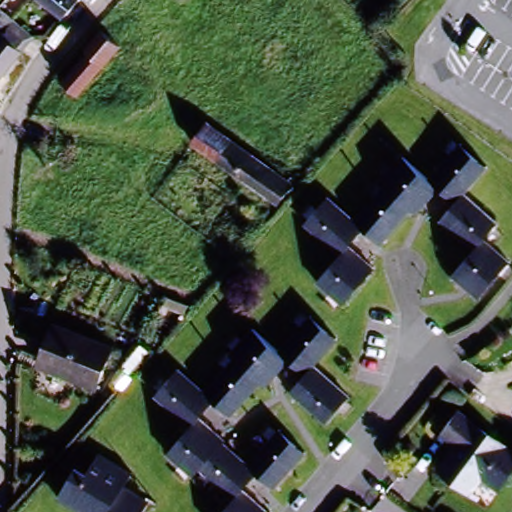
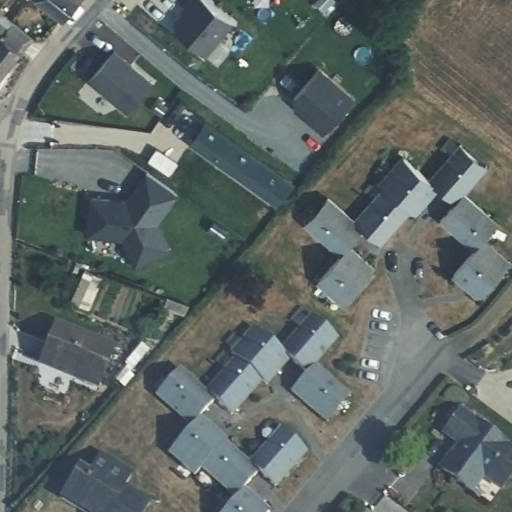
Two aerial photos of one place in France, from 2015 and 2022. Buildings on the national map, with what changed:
unchanged [(35,0),(74,0),(59,19),(35,0)]
new [(205,56),(170,24),(191,0),(206,0),(233,24),(205,56)]
unchanged [(16,54),(0,75),(0,16),(28,39),(16,54)]
demolished [(75,58),(95,34),(115,51),(75,100),(57,86),(79,60),(75,58)]
new [(151,81),(126,112),(87,78),(115,47),(151,81)]
new [(355,98),(322,134),(300,115),(302,113),(290,101),(321,66),(355,98)]
unchanged [(181,139),(195,119),(240,150),(243,145),(261,158),(257,162),(282,179),(303,195),(290,215),(181,139)]
unchanged [(459,147),(485,170),(462,196),(456,205),(437,188),(430,182),(459,147)]
unchanged [(380,186),(403,159),(430,182),(437,188),(415,215),(410,211),(384,189),(380,186)]
new [(87,199),(124,201),(145,173),(176,195),(155,223),(169,252),(135,268),(121,240),(85,237),(87,199)]
unchanged [(410,211),(380,246),(361,230),(355,223),(384,189),(410,211)]
unchanged [(440,223),(456,205),(462,196),(497,225),(481,244),(474,252),(440,223)]
unchanged [(305,228),(327,201),(355,223),(361,230),(345,249),(339,256),(305,228)]
unchanged [(480,302),(451,279),(474,252),(481,244),(509,269),(480,302)]
unchanged [(315,285),(339,256),(345,249),(371,272),(341,307),(315,285)]
unchanged [(311,318),(337,341),(314,369),(308,375),(288,359),(281,353),(311,318)]
unchanged [(73,378),(75,373),(38,360),(51,325),(112,347),(97,387),(73,378)]
unchanged [(265,386),(261,382),(235,360),(231,357),(255,330),(281,353),(288,359),(265,386)]
unchanged [(234,416),(213,399),(207,393),(235,360),(261,382),(234,416)]
unchanged [(291,395),(308,375),(314,369),(348,398),(326,424),(291,395)]
unchanged [(156,397),(180,371),(207,393),(213,399),(197,419),(191,427),(156,397)]
unchanged [(512,448),(512,470),(500,485),(483,472),(471,488),(440,466),(460,440),(445,430),(460,409),(512,448)]
unchanged [(197,419),(223,441),(222,443),(200,469),(194,475),(168,453),(191,427),(197,419)]
unchanged [(276,489),(257,472),(250,466),(278,432),(305,455),(276,489)]
unchanged [(222,443),(250,466),(257,472),(240,493),(234,499),(200,469),(222,443)]
unchanged [(147,500),(141,512),(78,512),(58,501),(76,468),(85,473),(97,453),(130,472),(121,486),(147,500)]
unchanged [(263,512),(223,512),(234,499),(240,493),(263,512)]

